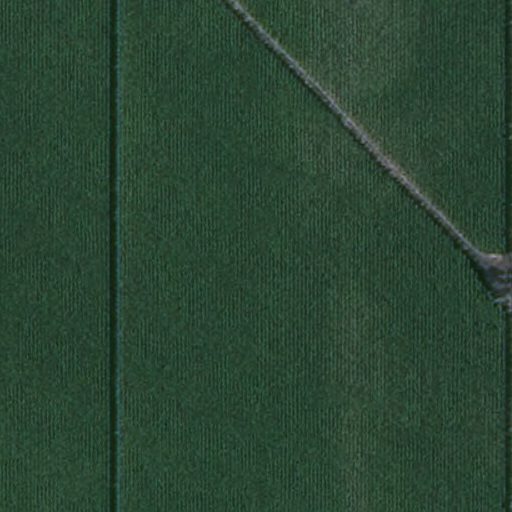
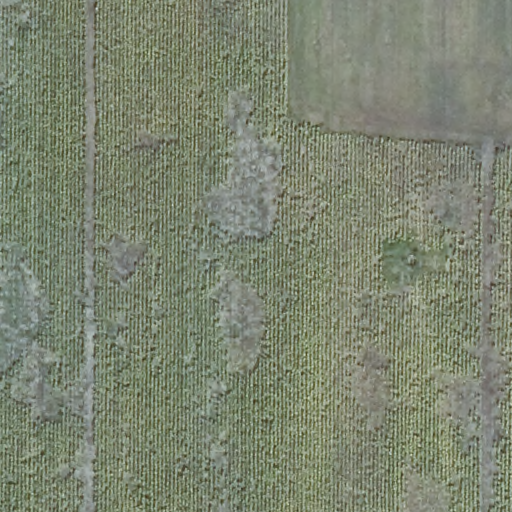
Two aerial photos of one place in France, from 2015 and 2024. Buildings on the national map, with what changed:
[]

